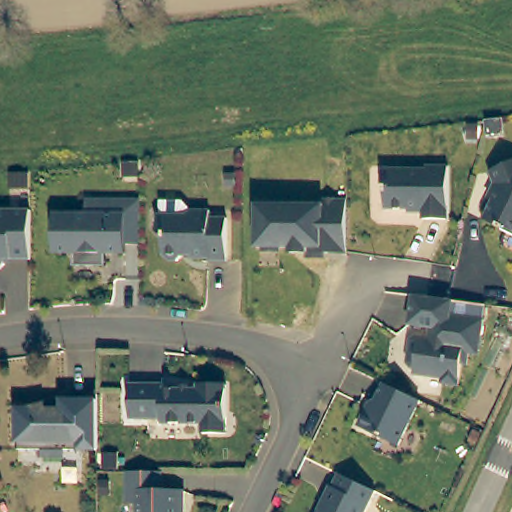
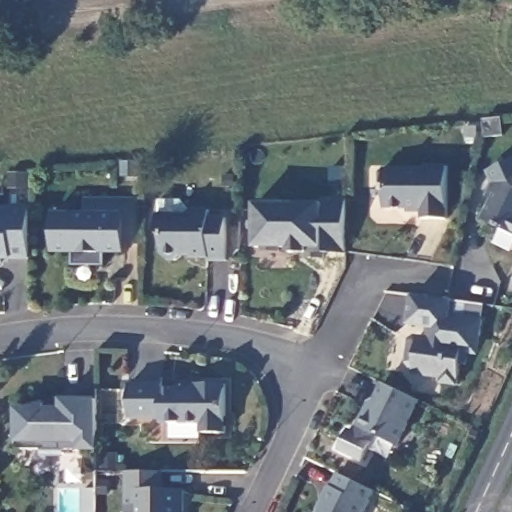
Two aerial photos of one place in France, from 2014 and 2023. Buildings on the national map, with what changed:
unchanged [(478,218),(492,191),(490,185),(484,170),(507,160),(512,159),(512,235),(478,218)]
unchanged [(440,218),(415,217),(415,207),(377,207),(377,185),(372,182),(373,172),(377,167),(418,167),(418,164),(440,164),(440,218)]
unchanged [(123,210),(84,210),(84,195),(138,196),(138,240),(122,240),(123,210)]
unchanged [(206,260),(206,258),(189,258),(189,255),(180,256),(175,260),(166,260),(162,254),(161,238),(156,232),(156,216),(157,215),(157,201),(180,201),(189,210),(206,210),(206,218),(224,218),(225,260),(206,260)]
unchanged [(339,256),(316,256),(316,261),(298,261),(298,256),(282,256),(282,251),(271,251),(271,254),(255,254),(255,251),(249,250),(250,208),(255,208),(255,204),(275,204),(275,208),(315,208),(315,203),(339,203),(339,256)]
unchanged [(33,255),(7,255),(7,260),(2,265),(0,265),(0,207),(32,207),(32,216),(33,255)]
unchanged [(122,240),(123,249),(104,249),(104,263),(72,263),(72,249),(52,249),(52,210),(84,210),(123,210),(122,240)]
unchanged [(467,334),(465,352),(460,351),(458,363),(452,362),(450,384),(433,382),(434,377),(405,373),(406,367),(403,367),(400,362),(401,347),(406,343),(410,344),(411,335),(420,336),(422,326),(401,323),(405,294),(413,294),(445,299),(476,303),(474,318),(472,334),(467,334)]
unchanged [(155,382),(155,387),(187,386),(188,382),(219,381),(218,431),(195,431),(195,421),(155,422),(155,416),(123,416),(122,383),(155,382)]
unchanged [(400,442),(359,423),(366,409),(372,407),(385,381),(420,399),(400,442)]
unchanged [(89,448),(54,448),(54,440),(35,440),(35,448),(10,448),(9,408),(20,408),(37,403),(54,398),(89,388),(89,401),(89,448)]
unchanged [(159,470),(159,489),(179,489),(179,509),(177,512),(134,512),(134,502),(122,502),(122,489),(122,470),(159,470)]
unchanged [(362,512),(320,512),(323,507),(319,504),(327,489),(330,489),(335,478),(370,494),(362,512)]

